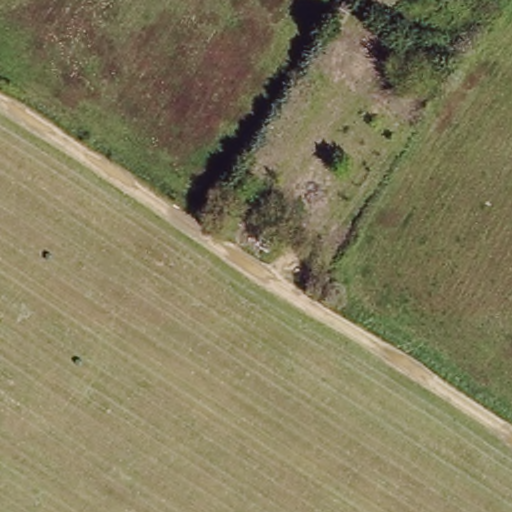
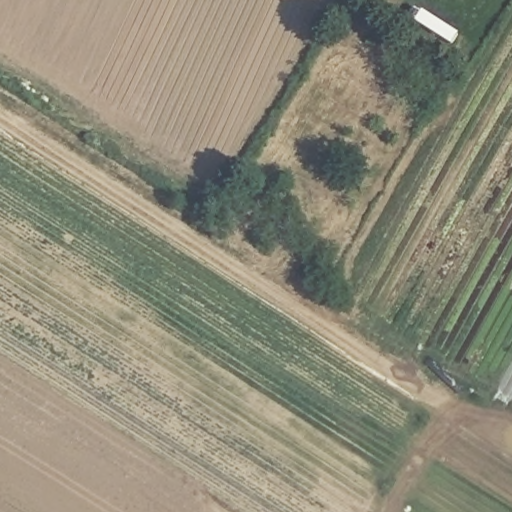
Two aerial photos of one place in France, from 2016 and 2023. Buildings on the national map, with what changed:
unchanged [(357,5),(342,27),(334,21),(348,0),(349,0),(357,5)]
unchanged [(260,235),(275,244),(269,253),(255,244),(260,235)]

